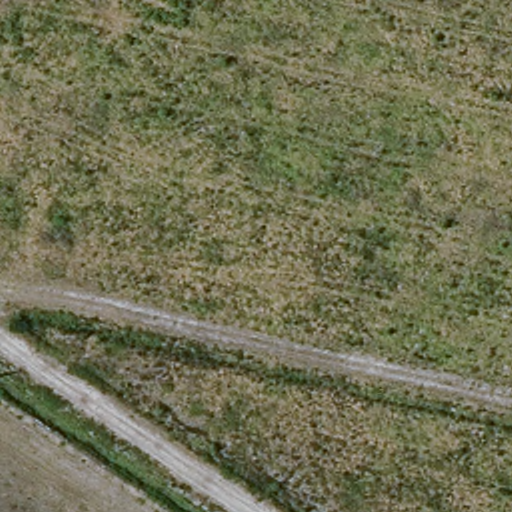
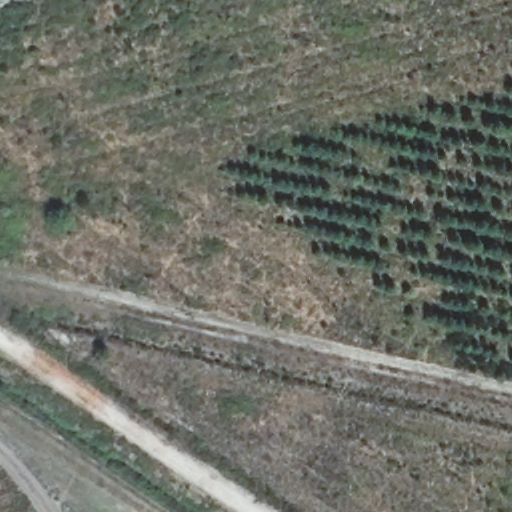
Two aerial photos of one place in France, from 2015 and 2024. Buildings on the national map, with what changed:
[]

